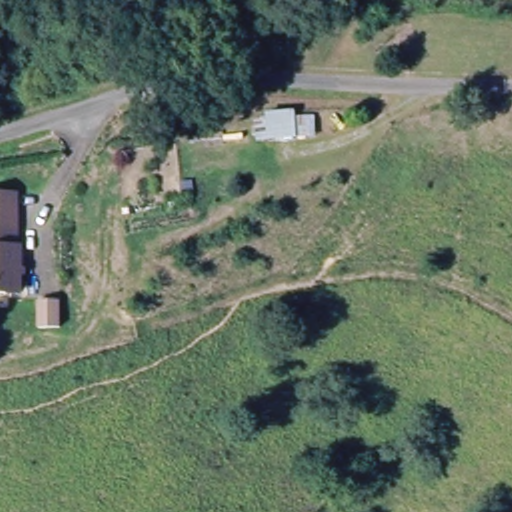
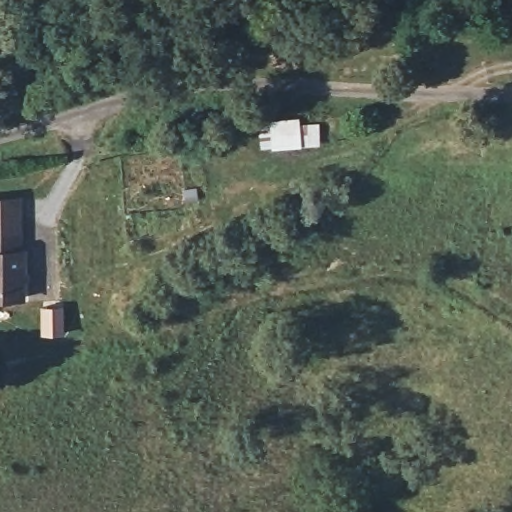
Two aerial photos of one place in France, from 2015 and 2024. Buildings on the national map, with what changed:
unchanged [(270,139),(259,140),(257,127),(270,126),(270,119),(301,117),(301,121),(320,121),(321,144),(271,147),(270,139)]
unchanged [(24,252),(15,251),(15,241),(15,232),(6,232),(0,232),(0,195),(21,195),(24,252)]
unchanged [(15,232),(15,241),(15,251),(24,252),(27,252),(27,295),(0,294),(0,232),(6,232),(15,232)]
unchanged [(68,312),(66,337),(45,337),(46,310),(68,312)]

